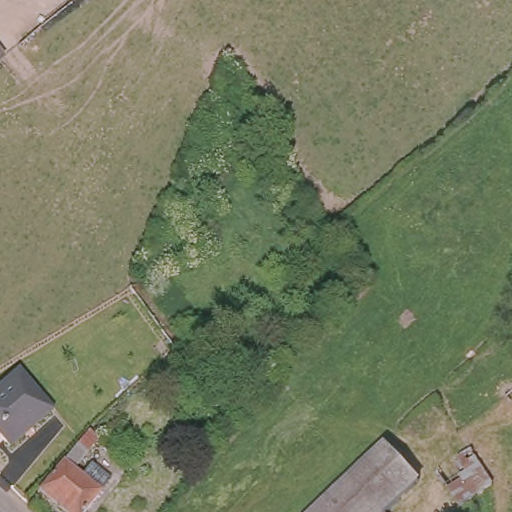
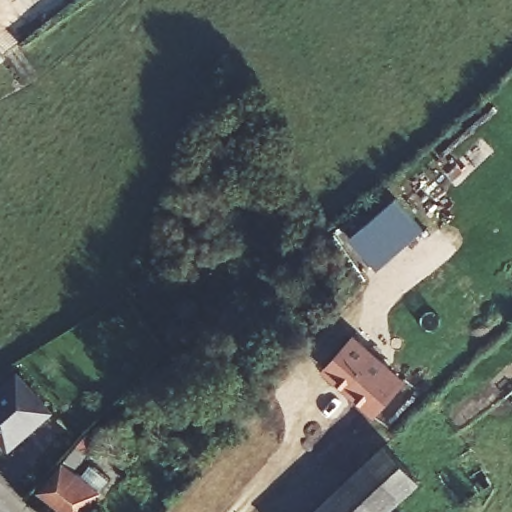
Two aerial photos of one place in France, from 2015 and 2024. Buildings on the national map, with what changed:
unchanged [(0,68),(0,50),(9,62),(0,68)]
new [(397,198),(424,230),(379,270),(351,238),(397,198)]
new [(355,334),(408,379),(376,418),(322,370),(355,334)]
unchanged [(13,444),(0,432),(0,388),(10,376),(44,408),(13,444)]
unchanged [(64,458),(54,448),(79,421),(99,442),(78,467),(103,491),(85,512),(63,512),(33,486),(64,458)]
unchanged [(392,512),(382,512),(393,501),(356,466),(384,440),(424,480),(392,512)]
unchanged [(477,455),(498,491),(464,511),(442,475),(477,455)]
unchanged [(382,512),(306,512),(356,466),(393,501),(382,512)]

